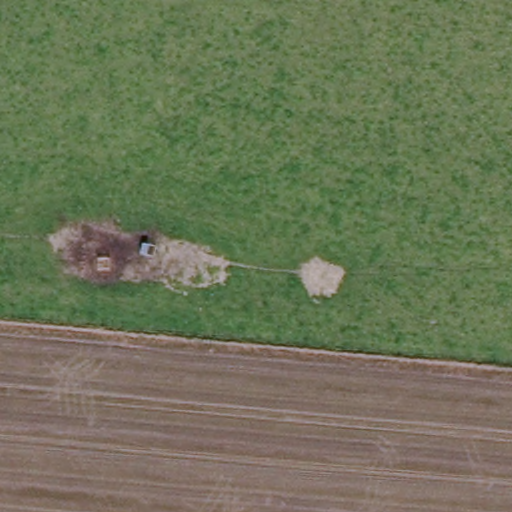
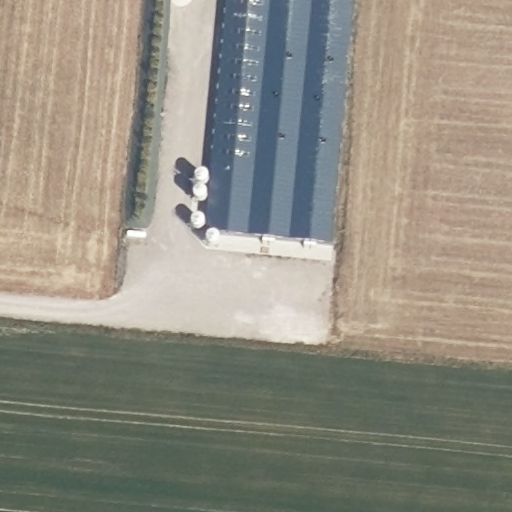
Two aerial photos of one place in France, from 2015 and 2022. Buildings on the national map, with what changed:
new [(329,265),(221,257),(242,0),(347,0),(329,265)]

